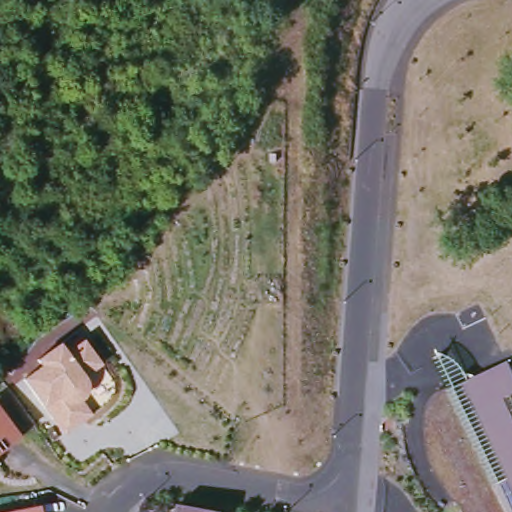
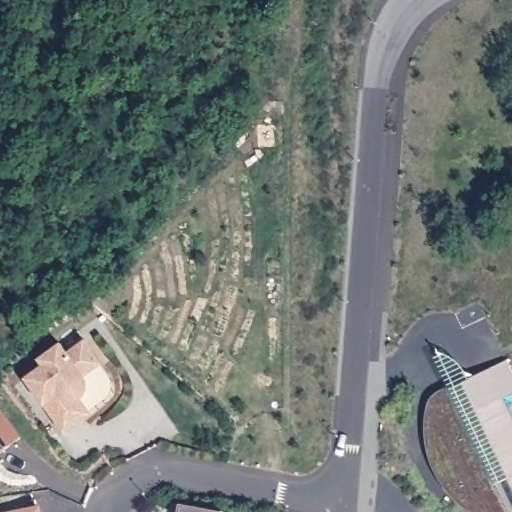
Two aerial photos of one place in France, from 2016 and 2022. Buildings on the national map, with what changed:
unchanged [(105,367),(88,378),(91,382),(92,390),(91,396),(86,400),(95,417),(65,436),(45,407),(25,380),(41,368),(38,363),(65,344),(70,353),(86,342),(105,367)]
unchanged [(512,371),(512,396),(505,400),(512,415),(512,512),(470,512),(451,496),(440,483),(429,460),(425,437),(425,419),(429,403),(435,397),(508,363),(512,371)]
unchanged [(0,456),(0,405),(25,438),(0,456)]
unchanged [(180,506),(220,512),(179,512),(180,506)]
unchanged [(42,507),(43,512),(20,512),(42,507)]

